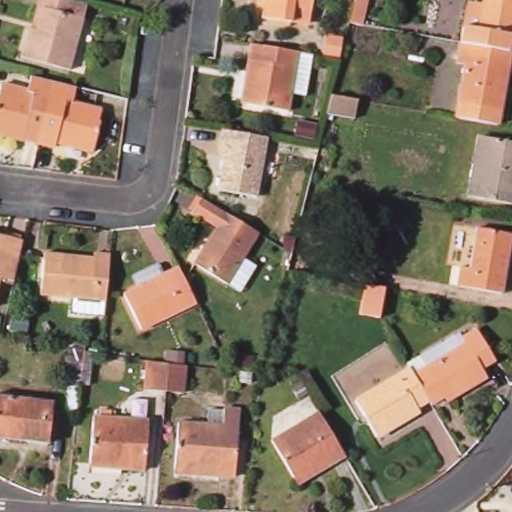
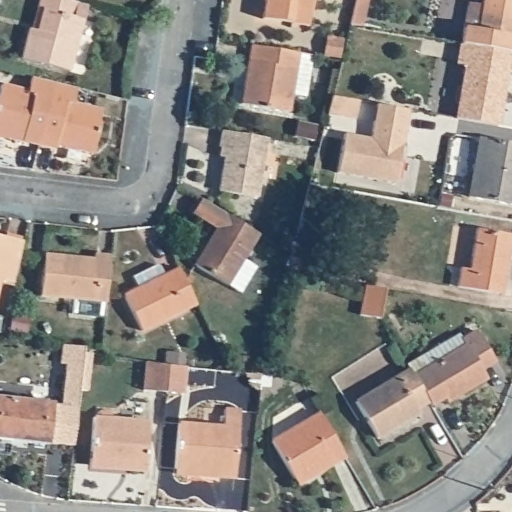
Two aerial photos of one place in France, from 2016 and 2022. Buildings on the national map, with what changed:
unchanged [(67,70),(19,56),(28,28),(32,29),(38,7),(35,6),(37,0),(71,0),(86,4),(67,70)]
unchanged [(264,17),(266,0),(314,0),(312,9),(310,23),(292,21),(264,17)]
unchanged [(360,27),(349,25),(356,0),(367,0),(360,27)]
unchanged [(479,8),(481,0),(512,0),(512,34),(512,37),(509,36),(506,52),(457,44),(460,27),(464,5),(479,8)]
unchanged [(328,37),(343,40),(339,57),(325,54),(328,37)]
unchanged [(306,97),(291,95),(289,112),(242,104),(252,44),(313,55),(306,97)]
unchanged [(462,66),(454,64),(457,44),(506,52),(509,52),(495,126),(453,118),(462,66)]
unchanged [(24,143),(0,137),(0,99),(2,99),(6,86),(31,92),(35,76),(59,82),(44,144),(25,139),(24,143)]
unchanged [(77,103),(105,110),(102,122),(105,123),(97,154),(63,145),(62,148),(44,144),(59,82),(81,88),(77,103)]
unchanged [(356,120),(327,115),(332,97),(360,102),(356,120)]
new [(335,172),(344,133),(369,138),(375,105),(408,110),(394,182),(335,172)]
unchanged [(220,191),(227,157),(221,156),(223,147),(220,146),(223,130),(269,138),(258,198),(220,191)]
unchanged [(512,143),(512,205),(467,195),(478,136),(512,143)]
unchanged [(235,293),(224,285),(192,264),(214,228),(193,214),(203,198),(258,232),(240,259),(253,266),(235,293)]
unchanged [(505,294),(460,286),(463,268),(471,269),(478,229),(512,235),(512,253),(505,294)]
unchanged [(10,283),(0,280),(0,238),(19,242),(10,283)]
unchanged [(35,294),(40,253),(63,256),(63,261),(90,265),(91,256),(106,258),(102,302),(35,294)]
unchanged [(141,329),(124,292),(139,285),(134,273),(159,260),(165,272),(179,266),(197,303),(141,329)]
unchanged [(361,314),(366,285),(385,288),(384,293),(381,318),(361,314)]
unchanged [(4,337),(0,337),(0,325),(6,325),(4,337)]
unchanged [(424,359),(464,337),(466,342),(481,334),(499,365),(486,372),(492,383),(439,414),(437,409),(434,406),(416,374),(412,368),(426,360),(424,359)]
unchanged [(164,392),(143,390),(144,360),(165,363),(185,365),(183,393),(164,392)]
unchanged [(422,413),(424,417),(381,443),(360,407),(416,374),(434,406),(422,413)]
unchanged [(0,436),(0,395),(50,401),(46,441),(0,436)]
unchanged [(333,466),(332,464),(298,483),(274,442),(320,414),(346,459),(333,466)]
unchanged [(145,471),(129,470),(129,467),(89,464),(94,417),(149,422),(145,471)]
unchanged [(239,422),(233,481),(185,477),(189,435),(205,437),(207,421),(223,423),(223,420),(239,422)]

